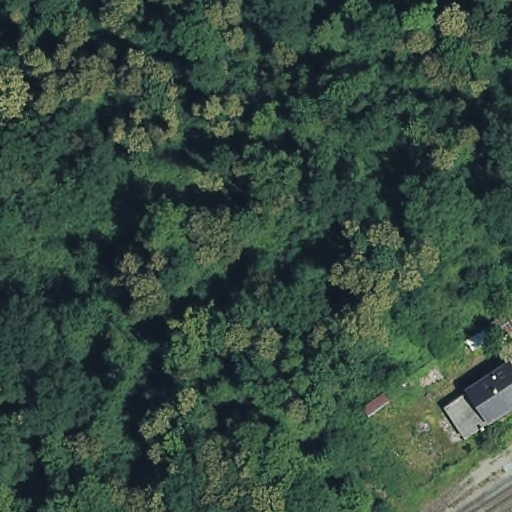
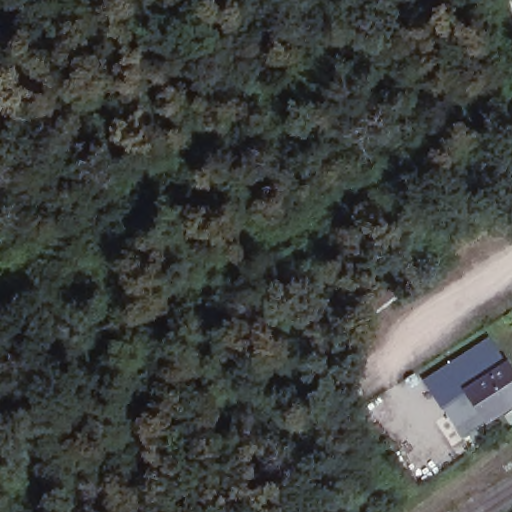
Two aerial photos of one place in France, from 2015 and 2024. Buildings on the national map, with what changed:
new [(443,412),(422,384),(491,338),(508,365),(443,412)]
unchanged [(512,370),(512,412),(467,444),(443,412),(508,365),(512,370)]

